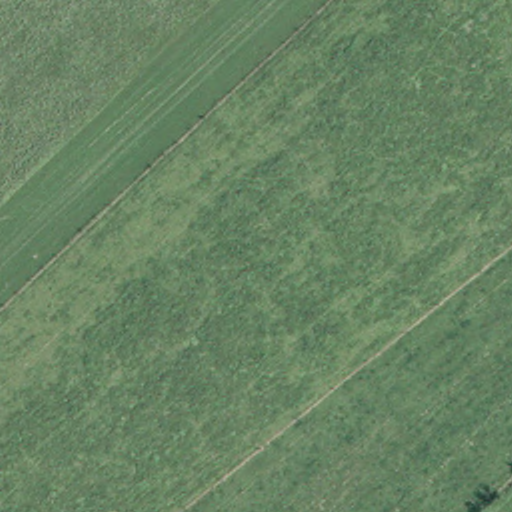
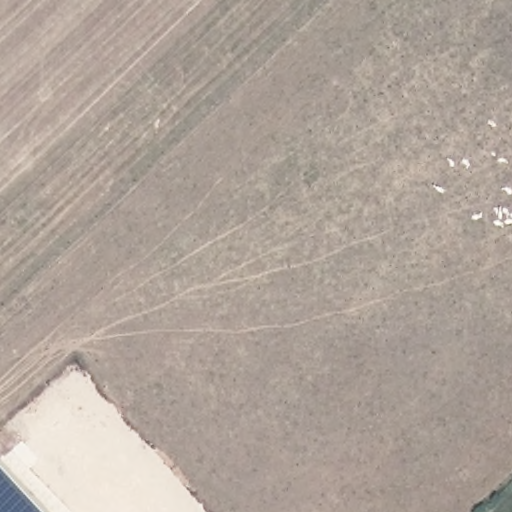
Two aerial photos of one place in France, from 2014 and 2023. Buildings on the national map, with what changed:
new [(1,458),(50,512),(0,512),(0,458),(1,458)]

